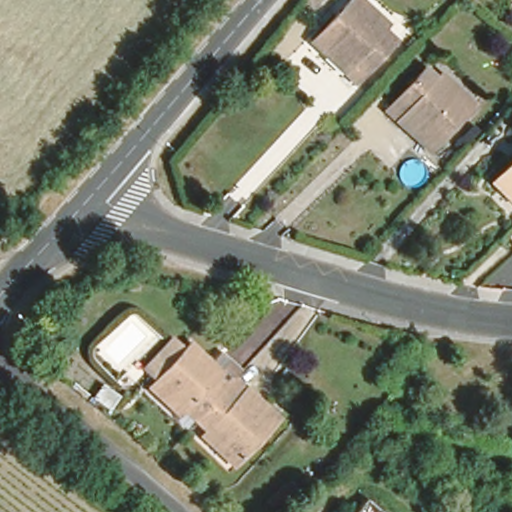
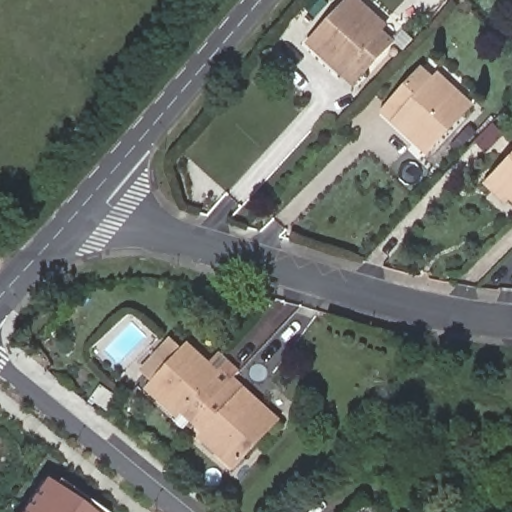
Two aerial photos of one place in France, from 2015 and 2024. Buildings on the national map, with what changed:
unchanged [(361,81),(345,67),(349,61),(336,49),(331,55),(316,41),(351,0),(367,0),(374,6),(390,21),(387,24),(400,36),(361,81)]
unchanged [(463,0),(466,0),(464,2),(463,0)]
unchanged [(435,150),(416,134),(421,128),(403,113),(398,118),(387,108),(426,63),(440,75),(443,72),(459,85),(477,101),(435,150)]
unchanged [(349,125),(337,116),(352,98),(363,109),(349,125)]
unchanged [(510,193),(504,199),(483,182),(512,149),(512,195),(510,193)]
unchanged [(157,396),(162,389),(149,378),(176,343),(190,356),(192,352),(222,377),(228,370),(241,381),(205,426),(187,411),(182,418),(169,407),(157,396)]
unchanged [(217,437),(205,426),(241,381),(254,390),(248,397),(263,409),(267,405),(285,419),(242,468),(225,454),(212,444),(217,437)]
new [(47,472),(55,478),(104,512),(18,512),(42,478),(47,472)]

